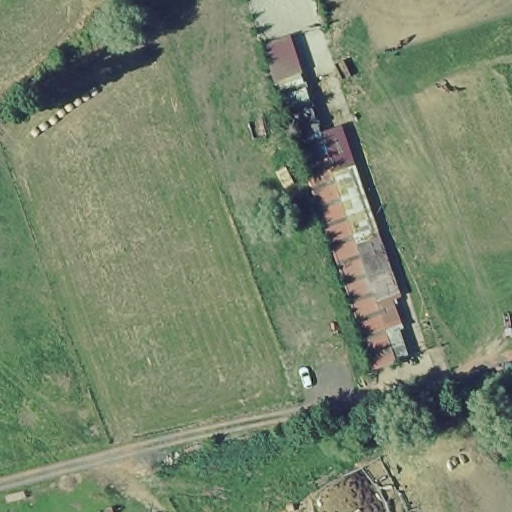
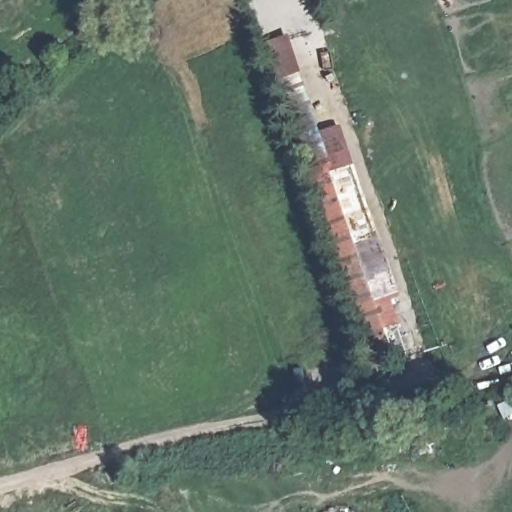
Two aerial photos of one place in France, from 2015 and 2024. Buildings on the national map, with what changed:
unchanged [(307,74),(311,84),(339,171),(360,164),(414,320),(391,333),(399,356),(371,367),(282,97),(277,84),(262,43),(287,36),(301,76),(307,74)]

